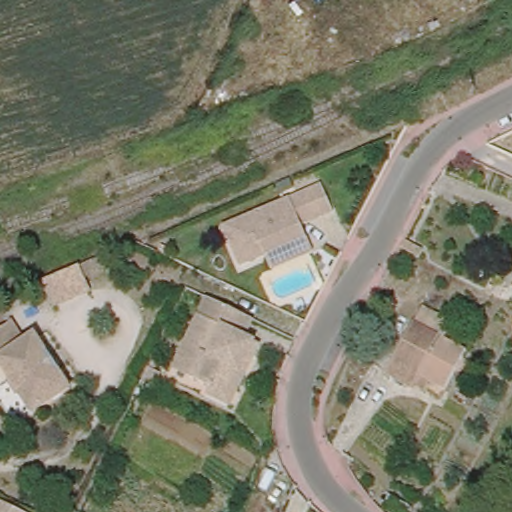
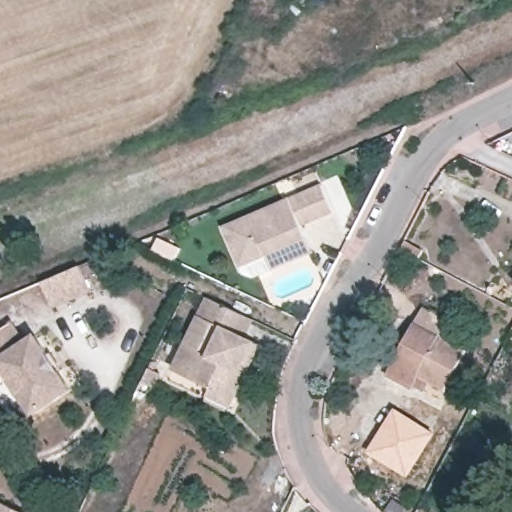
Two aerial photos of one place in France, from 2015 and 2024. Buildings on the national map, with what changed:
unchanged [(268,265),(263,252),(242,260),(225,221),(322,180),(334,207),(301,221),(307,235),(285,243),(290,255),(268,265)]
unchanged [(92,292),(57,307),(45,282),(82,266),(92,292)]
unchanged [(209,391),(213,382),(174,363),(184,341),(200,310),(208,292),(254,313),(246,331),(261,338),(238,387),(231,402),(209,391)]
unchanged [(415,383),(413,388),(388,375),(424,306),(452,321),(444,337),(467,350),(445,389),(430,381),(425,390),(415,383)]
unchanged [(40,334),(77,388),(41,413),(4,361),(0,363),(0,335),(17,323),(30,341),(40,334)]
new [(395,407),(435,432),(408,477),(366,452),(395,407)]
unchanged [(18,512),(0,512),(0,503),(18,512)]

